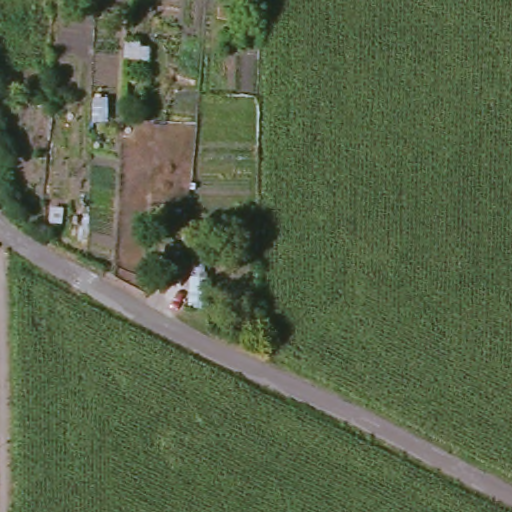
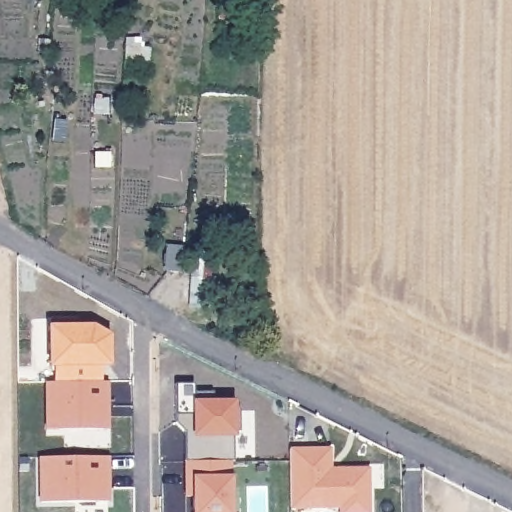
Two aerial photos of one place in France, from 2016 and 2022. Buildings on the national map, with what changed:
new [(101,366),(101,382),(51,383),(51,366),(48,366),(47,335),(47,327),(90,326),(108,336),(109,346),(109,366),(101,366)]
new [(51,383),(101,382),(107,382),(107,401),(103,401),(103,430),(45,430),(44,383),(51,383)]
new [(189,386),(189,394),(208,394),(208,405),(228,404),(234,409),(235,432),(228,433),(228,462),(225,462),(181,463),(180,463),(179,434),(170,425),(170,387),(189,386)]
new [(329,450),(329,470),(368,470),(368,512),(341,512),(341,508),(288,509),(288,450),(329,450)]
new [(106,458),(107,503),(39,504),(38,458),(106,458)]
new [(225,462),(225,512),(188,512),(188,498),(181,498),(181,463),(225,462)]

